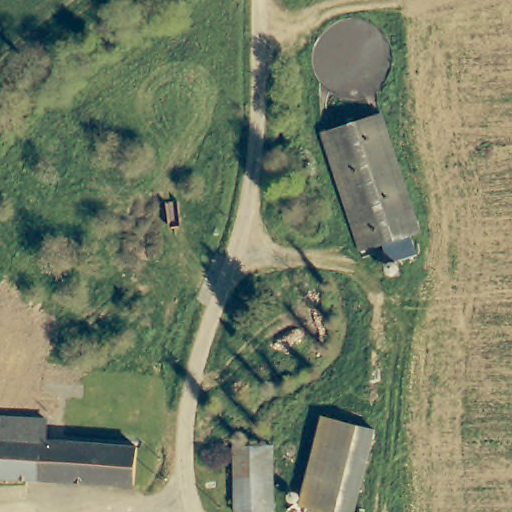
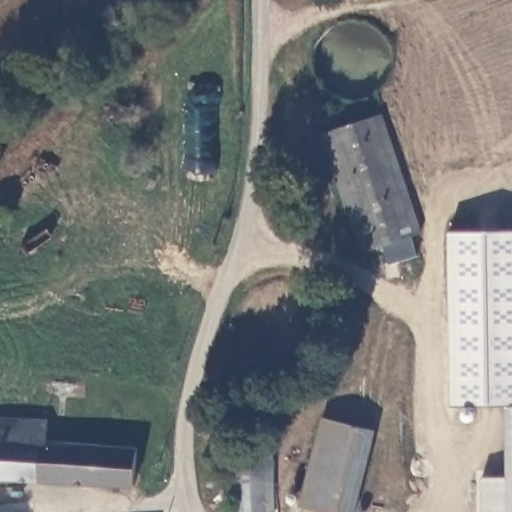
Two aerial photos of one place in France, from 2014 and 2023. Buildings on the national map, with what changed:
unchanged [(385,245),(363,254),(322,137),(378,116),(419,234),(412,236),(420,255),(392,263),(385,245)]
new [(507,475),(507,405),(450,405),(447,231),(512,230),(512,512),(482,512),(482,476),(507,475)]
unchanged [(318,512),(305,509),(326,418),(377,431),(357,512),(318,512)]
unchanged [(134,489),(0,481),(0,419),(6,419),(51,421),(49,445),(136,451),(134,489)]
unchanged [(234,512),(236,450),(273,453),(270,512),(234,512)]

